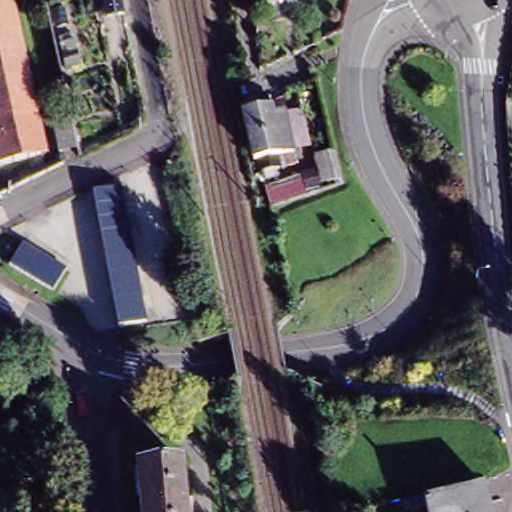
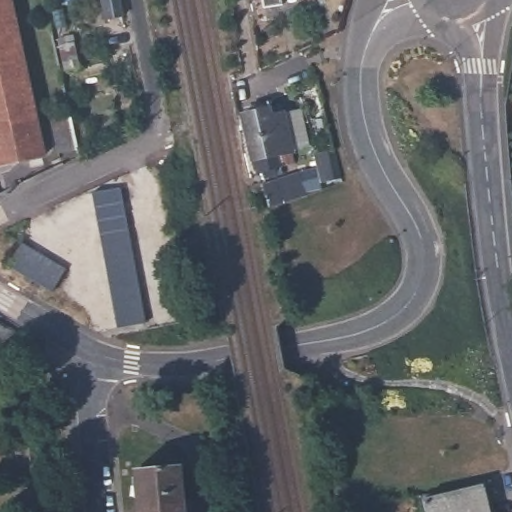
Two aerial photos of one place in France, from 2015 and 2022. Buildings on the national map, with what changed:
unchanged [(0,164),(0,0),(7,0),(42,154),(0,164)]
unchanged [(116,0),(119,17),(102,20),(98,0),(116,0)]
unchanged [(256,9),(255,0),(318,0),(317,8),(256,9)]
unchanged [(289,153),(251,162),(239,113),(281,102),(289,153)]
unchanged [(289,153),(282,111),(304,110),(311,145),(289,153)]
unchanged [(78,143),(60,147),(54,120),(72,116),(78,143)]
unchanged [(117,194),(142,329),(116,335),(90,199),(117,194)]
unchanged [(46,298),(0,272),(17,242),(62,268),(46,298)]
unchanged [(138,467),(181,464),(184,512),(141,512),(138,467)]
unchanged [(423,501),(481,487),(487,512),(426,512),(423,501)]

